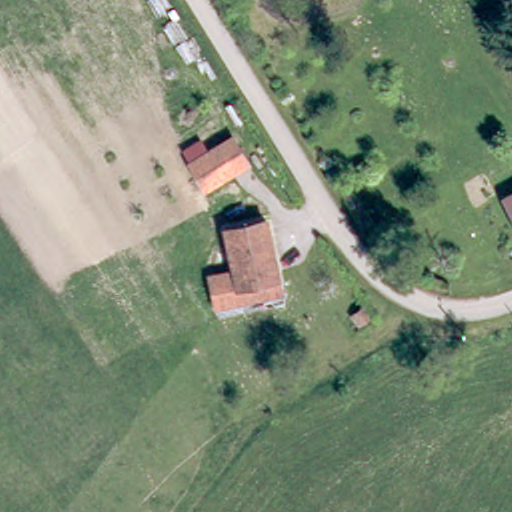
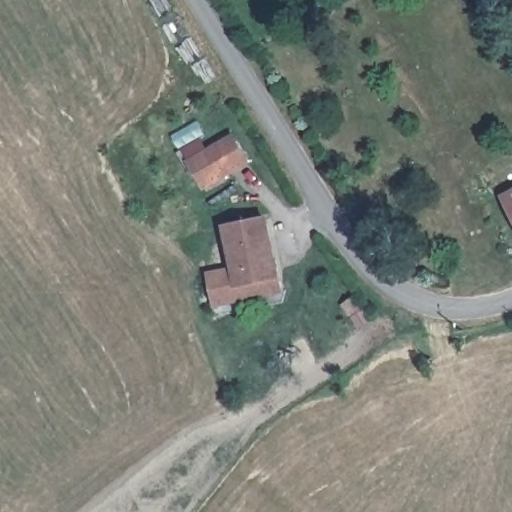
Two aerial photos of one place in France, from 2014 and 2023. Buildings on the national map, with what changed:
unchanged [(250,164),(203,191),(186,161),(230,133),(250,164)]
unchanged [(512,195),(512,215),(503,199),(512,195)]
unchanged [(263,221),(279,292),(213,307),(207,277),(232,273),(225,230),(263,221)]

